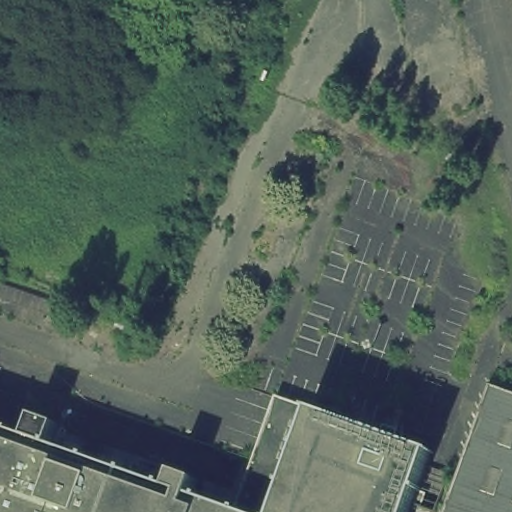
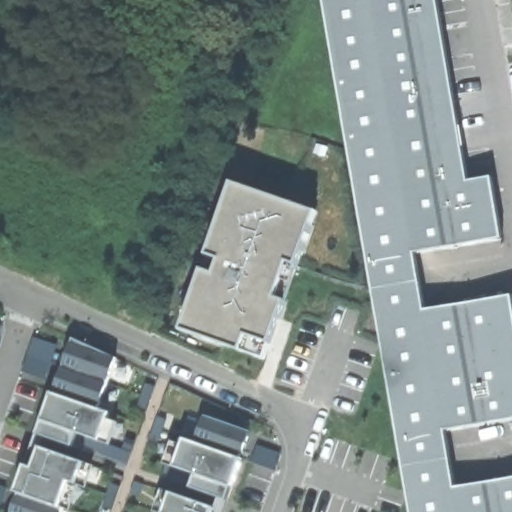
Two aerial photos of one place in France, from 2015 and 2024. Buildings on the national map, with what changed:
new [(469,181),(492,178),(503,239),(416,255),(426,311),(512,297),(512,421),(446,432),(456,488),(512,479),(512,512),(411,512),(324,0),(438,0),(469,181)]
new [(203,271),(216,274),(220,261),(208,256),(234,183),(318,212),(266,360),(181,331),(203,271)]
new [(2,327),(0,334),(0,326),(2,327)]
new [(34,338),(57,346),(45,380),(22,372),(34,338)]
new [(17,493),(26,466),(73,339),(116,359),(98,409),(110,414),(100,441),(123,450),(128,438),(136,441),(127,466),(45,438),(41,447),(86,464),(78,485),(70,483),(62,507),(64,509),(63,512),(13,512),(19,495),(17,493)]
demolished [(512,390),(512,512),(449,512),(490,382),(512,390)]
new [(147,384),(155,387),(147,410),(139,407),(147,384)]
demolished [(312,413),(279,512),(245,512),(235,508),(275,392),(312,413)]
demolished [(431,451),(413,512),(279,512),(312,413),(431,451)]
new [(158,417),(166,420),(158,443),(150,440),(158,417)]
new [(217,509),(221,500),(162,478),(167,465),(175,467),(185,439),(197,443),(206,417),(250,432),(241,458),(243,460),(225,512),(167,512),(173,494),(217,509)]
demolished [(235,508),(245,512),(0,512),(0,424),(235,508)]
new [(258,446),(282,455),(276,472),(253,464),(258,446)]
new [(135,482),(144,485),(140,496),(132,494),(135,482)]
new [(111,484),(120,487),(112,510),(104,508),(111,484)]
new [(7,489),(1,506),(0,506),(0,486),(7,489)]

